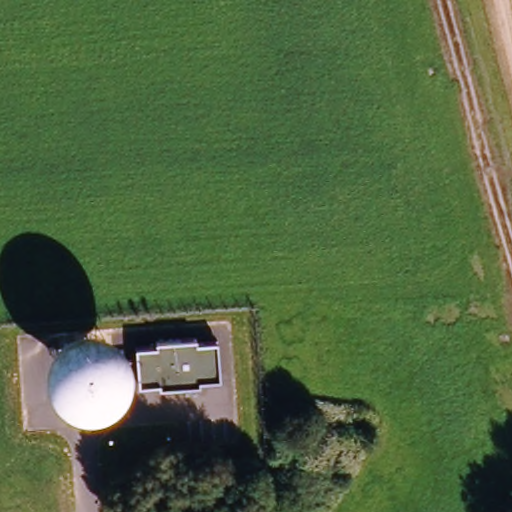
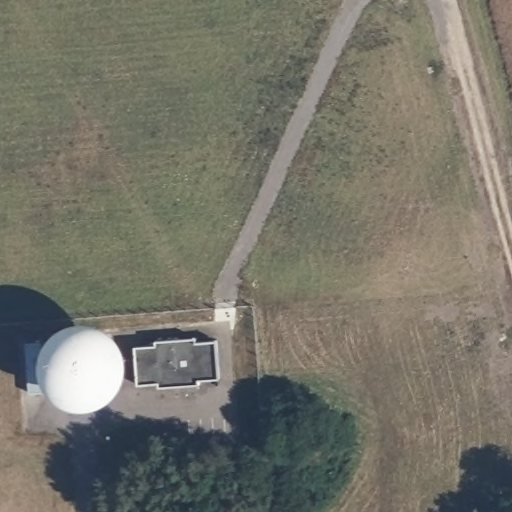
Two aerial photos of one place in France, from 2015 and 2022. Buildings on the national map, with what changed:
unchanged [(158,345),(157,341),(196,338),(196,343),(218,341),(221,380),(200,382),(200,387),(159,389),(159,384),(138,386),(135,348),(158,345)]

